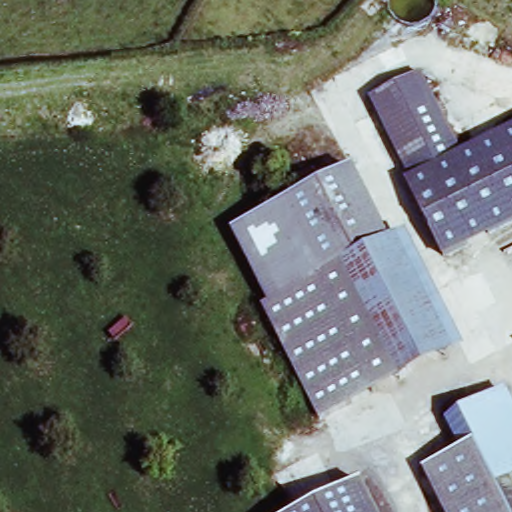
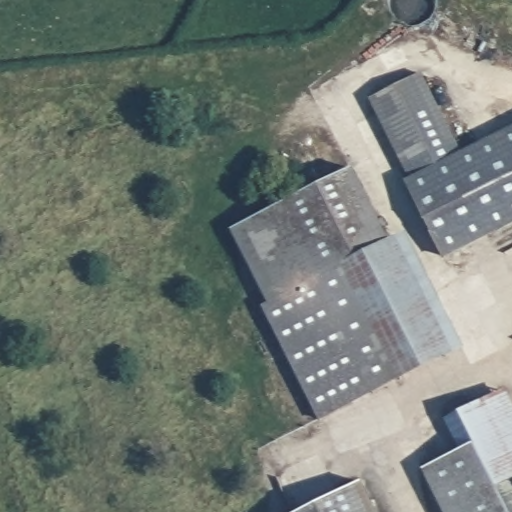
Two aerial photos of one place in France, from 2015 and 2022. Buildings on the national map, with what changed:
unchanged [(409,176),(371,94),(422,70),(459,152),(409,176)]
unchanged [(512,217),(439,251),(405,178),(409,176),(459,152),(512,127),(512,217)]
unchanged [(276,303),(238,229),(349,171),(388,245),(276,303)]
unchanged [(388,245),(446,358),(316,425),(258,312),(276,303),(388,245)]
unchanged [(473,404),(504,389),(512,406),(512,476),(509,478),(473,404)]
unchanged [(446,418),(452,415),(447,405),(462,397),(467,407),(473,404),(509,478),(512,485),(512,512),(492,512),(460,446),(446,418)]
unchanged [(460,446),(492,512),(444,512),(422,465),(460,446)]
unchanged [(378,512),(300,512),(362,481),(378,512)]

